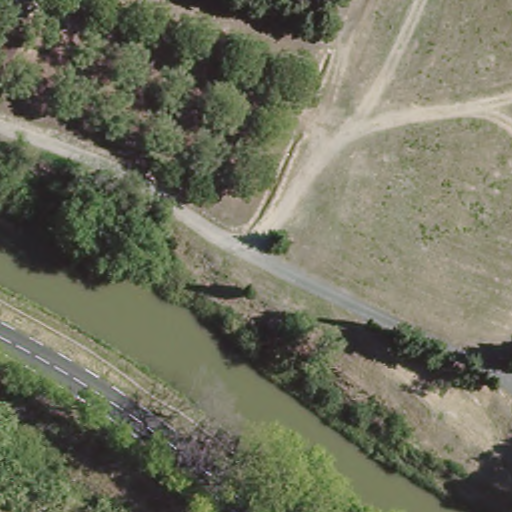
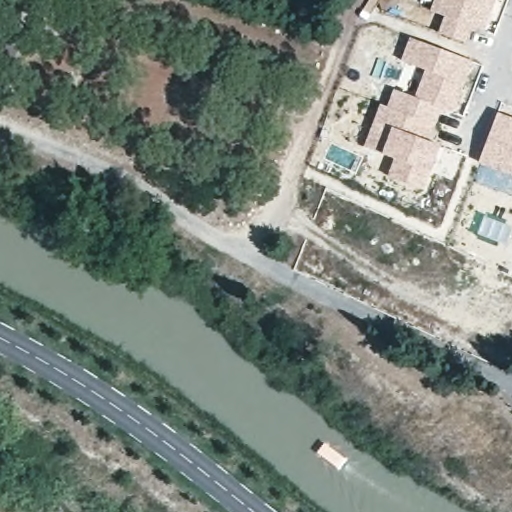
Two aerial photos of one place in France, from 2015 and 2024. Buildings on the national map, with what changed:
new [(433,0),(496,0),(484,33),(472,29),(467,43),(437,32),(442,16),(429,10),(433,0)]
new [(380,103),(386,105),(393,88),(414,95),(424,70),(400,60),(409,36),(473,62),(452,113),(442,110),(430,140),(441,145),(424,190),(387,174),(394,158),(363,145),(380,103)]
new [(497,111),(512,117),(512,177),(477,163),(497,111)]

